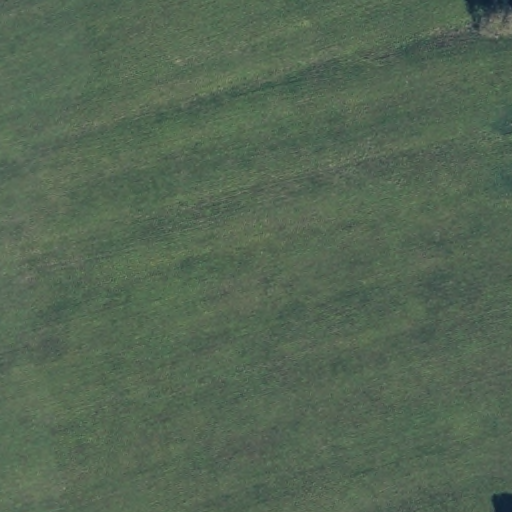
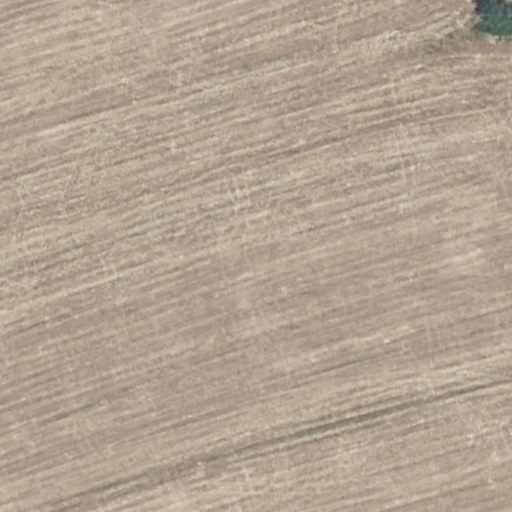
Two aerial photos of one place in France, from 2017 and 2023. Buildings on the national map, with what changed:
[]

